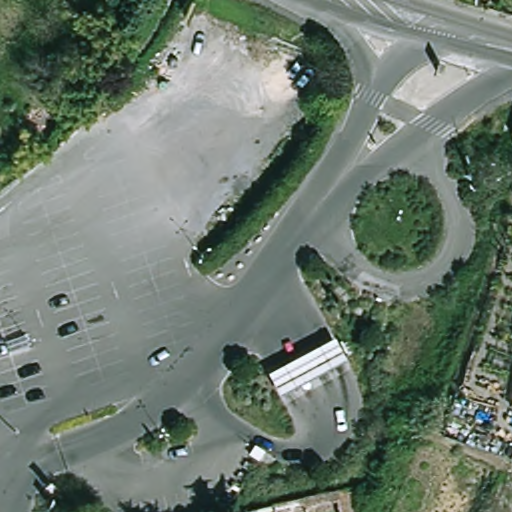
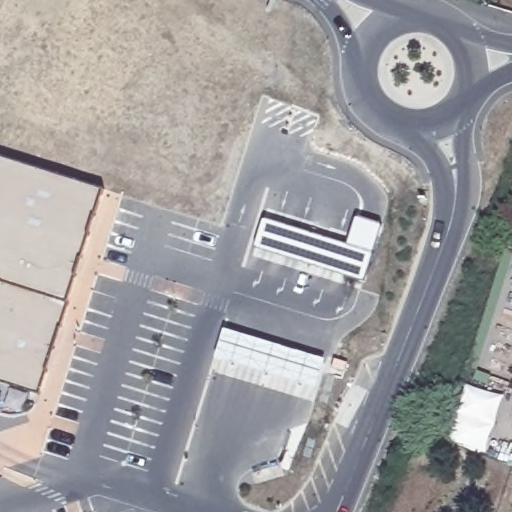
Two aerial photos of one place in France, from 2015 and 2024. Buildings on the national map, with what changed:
demolished [(47,137),(30,121),(41,109),(59,124),(47,137)]
new [(68,301),(38,395),(0,382),(0,158),(102,191),(68,301)]
new [(347,246),(357,217),(382,224),(365,282),(255,248),(265,220),(347,246)]
new [(327,361),(317,389),(217,360),(226,330),(327,361)]
demolished [(273,380),(342,348),(352,369),(285,402),(273,380)]
demolished [(330,496),(361,488),(360,490),(353,512),(260,512),(266,511),(330,496)]

